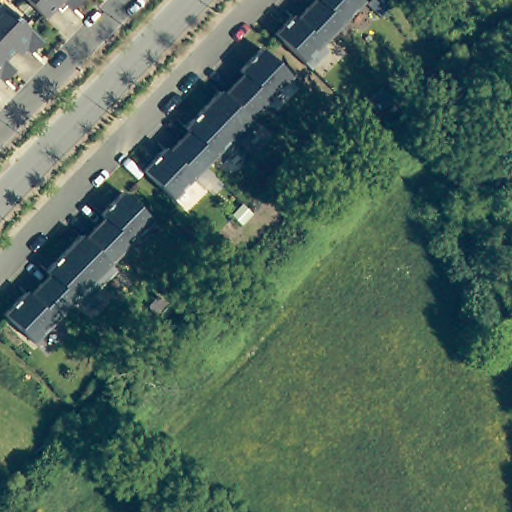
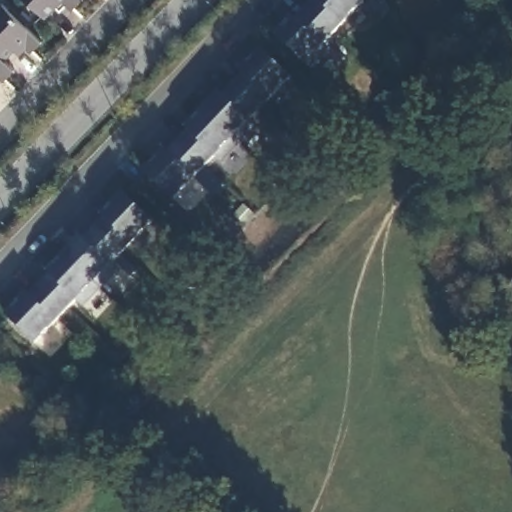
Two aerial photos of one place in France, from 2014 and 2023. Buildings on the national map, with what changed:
unchanged [(0,52),(0,1),(1,0),(4,0),(42,37),(32,48),(27,43),(19,50),(14,45),(4,55),(0,52)]
unchanged [(73,10),(67,5),(61,12),(55,7),(45,18),(26,0),(83,0),(73,10)]
unchanged [(315,0),(362,0),(363,1),(332,34),(327,29),(306,9),(315,0)]
unchanged [(371,0),(385,0),(391,9),(381,18),(367,4),(371,0)]
unchanged [(292,16),(296,20),(306,9),(327,29),(332,34),(322,45),(328,51),(311,69),(304,62),(275,34),(292,16)]
unchanged [(244,74),(240,71),(262,49),(291,77),(260,110),(234,85),(244,74)]
unchanged [(4,55),(15,66),(5,76),(0,72),(0,52),(4,55)]
unchanged [(220,92),(224,95),(234,85),(260,110),(249,120),(256,126),(239,144),(202,110),(220,92)]
unchanged [(388,109),(377,98),(387,88),(396,95),(398,98),(388,109)]
unchanged [(189,131),(185,128),(202,110),(239,144),(221,162),(215,156),(205,167),(179,142),(189,131)]
unchanged [(165,149),(169,152),(179,142),(205,167),(173,199),(144,171),(165,149)]
unchanged [(105,218),(101,215),(122,192),(152,221),(121,254),(95,229),(105,218)]
unchanged [(81,236),(85,239),(95,229),(121,254),(111,264),(117,270),(100,288),(90,279),(64,254),(81,236)]
unchanged [(50,275),(47,272),(64,254),(90,279),(100,288),(82,306),(76,300),(66,310),(42,288),(40,285),(50,275)]
unchanged [(42,288),(66,310),(35,343),(5,315),(27,292),(30,296),(40,285),(42,288)]

